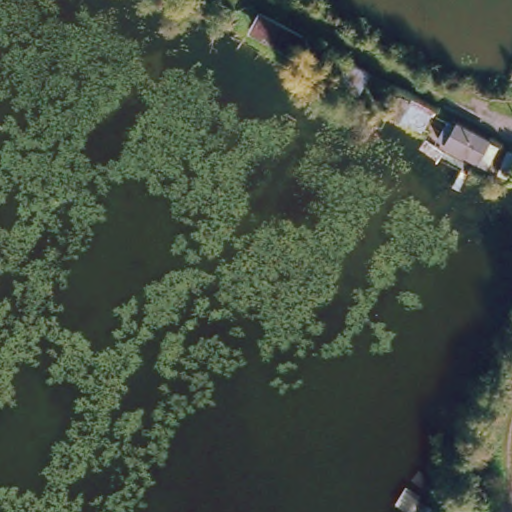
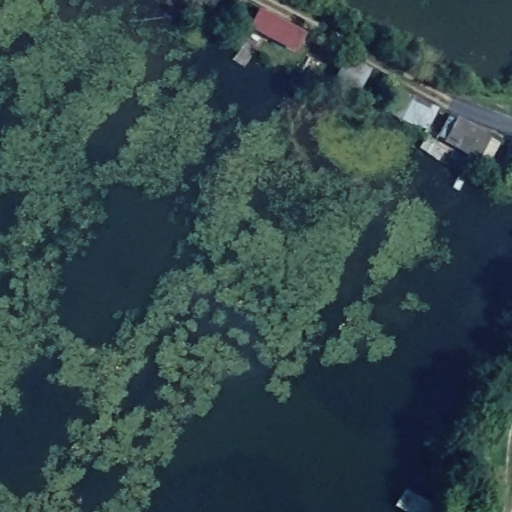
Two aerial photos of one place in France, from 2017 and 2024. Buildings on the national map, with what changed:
unchanged [(300,36),(290,51),(250,28),(258,12),(300,36)]
unchanged [(362,90),(340,77),(349,62),(370,75),(362,90)]
unchanged [(471,156),(438,138),(448,120),(481,138),(471,156)]

